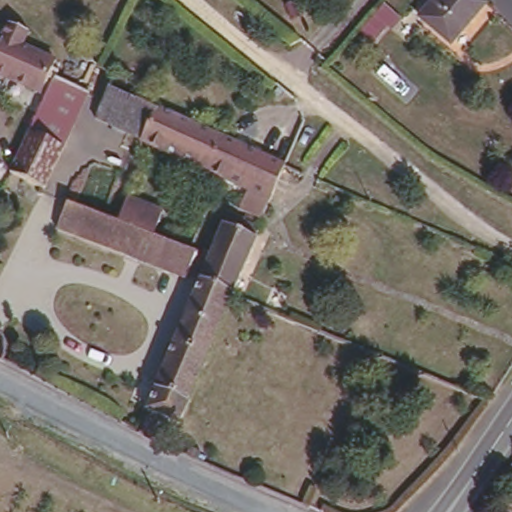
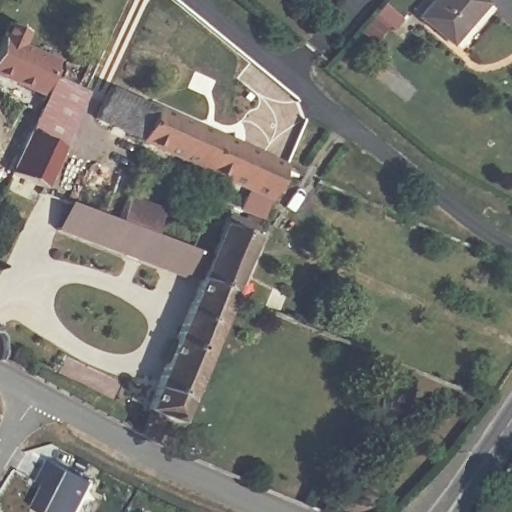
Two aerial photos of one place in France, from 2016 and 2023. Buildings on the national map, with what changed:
unchanged [(456,45),(424,21),(442,0),(486,0),(492,5),(456,45)]
unchanged [(359,31),(348,22),(361,10),(370,18),(359,31)]
unchanged [(0,76),(0,52),(10,31),(30,38),(25,49),(55,64),(46,78),(40,95),(0,76)]
unchanged [(39,189),(11,176),(55,82),(61,71),(69,74),(65,86),(75,90),(47,140),(61,147),(39,189)]
unchanged [(97,121),(109,100),(113,86),(157,106),(142,140),(97,121)]
unchanged [(150,143),(142,140),(157,106),(280,160),(278,166),(265,194),(150,143)]
unchanged [(196,281),(193,287),(57,227),(66,200),(117,218),(126,194),(165,211),(154,234),(206,254),(222,265),(210,287),(196,281)]
unchanged [(240,224),(267,233),(275,238),(241,301),(210,287),(222,265),(240,224)]
unchanged [(210,287),(241,301),(182,424),(165,417),(150,442),(139,435),(210,287)]
new [(92,485),(79,512),(38,512),(36,511),(48,489),(40,485),(51,463),(92,485)]

